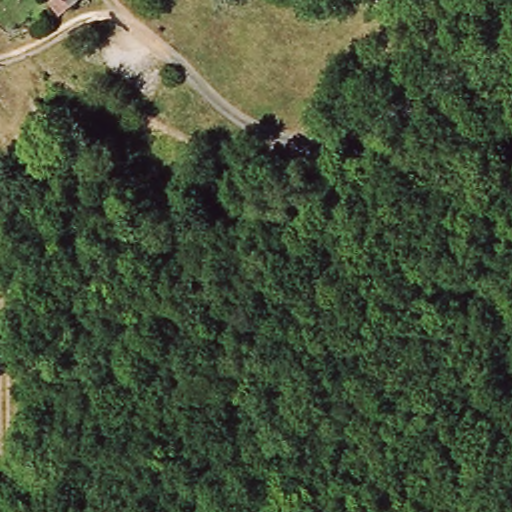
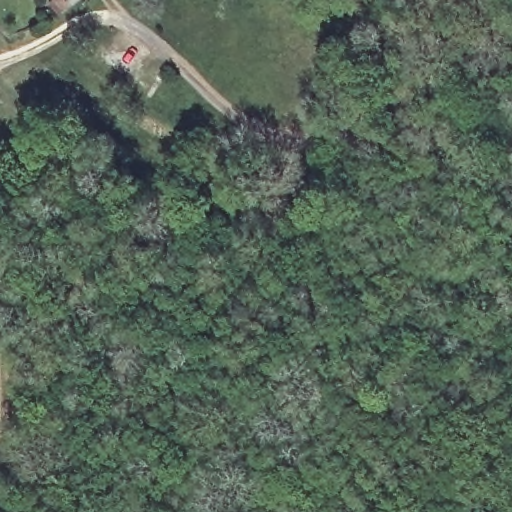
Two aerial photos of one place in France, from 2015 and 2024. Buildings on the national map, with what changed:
unchanged [(47,1),(48,0),(75,0),(59,14),(47,1)]

